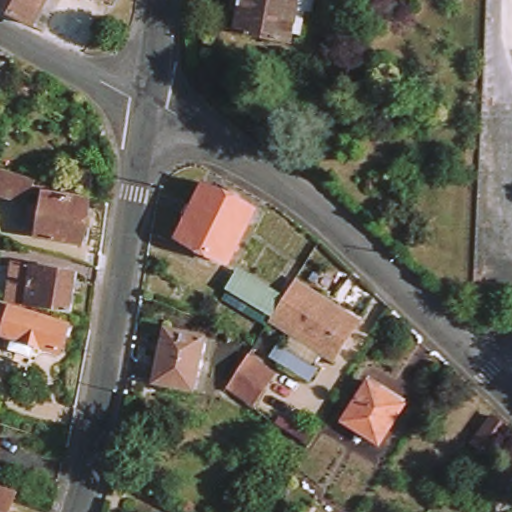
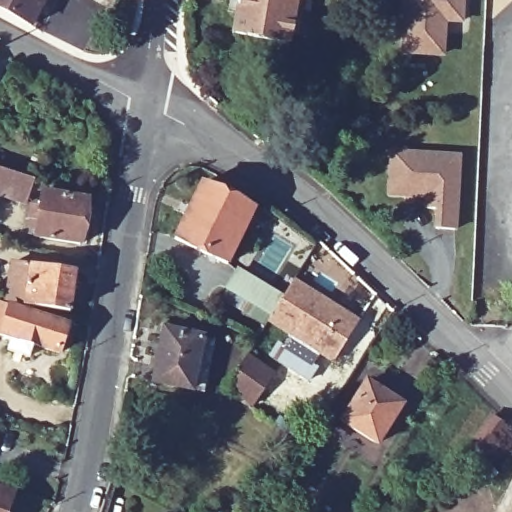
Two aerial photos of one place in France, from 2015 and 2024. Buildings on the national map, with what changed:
unchanged [(0,8),(0,0),(41,0),(28,23),(0,8)]
unchanged [(104,0),(107,0),(106,1),(104,0)]
unchanged [(240,0),(298,0),(291,41),(234,31),(240,0)]
new [(403,0),(465,0),(464,24),(446,23),(445,57),(399,57),(403,0)]
new [(433,229),(434,209),(424,211),(425,200),(386,198),(389,150),(463,155),(458,232),(433,229)]
unchanged [(0,195),(0,168),(44,181),(41,189),(35,187),(29,204),(0,195)]
unchanged [(228,262),(177,236),(205,183),(255,209),(228,262)]
unchanged [(88,199),(82,243),(37,237),(44,192),(88,199)]
unchanged [(23,263),(78,273),(72,312),(29,305),(26,303),(18,301),(23,263)]
unchanged [(235,283),(246,267),(290,292),(278,309),(235,283)]
unchanged [(278,309),(290,292),(297,280),(362,321),(337,359),(324,350),(315,364),(329,372),(321,385),(282,361),(290,349),(302,356),(310,342),(272,320),(278,309)]
unchanged [(0,333),(0,304),(11,308),(69,329),(60,354),(4,335),(3,334),(0,333)]
unchanged [(203,335),(192,387),(155,380),(165,328),(203,335)]
unchanged [(243,370),(250,372),(256,363),(271,372),(266,382),(268,384),(258,399),(234,385),(243,370)]
unchanged [(382,444),(346,421),(368,384),(405,406),(382,444)]
unchanged [(500,425),(472,470),(470,472),(462,485),(447,475),(457,459),(457,455),(484,415),(500,425)]
unchanged [(512,449),(501,464),(485,454),(504,427),(512,433),(512,449)]
unchanged [(408,470),(413,461),(419,465),(413,475),(408,470)]
unchanged [(14,496),(9,512),(0,512),(0,491),(14,496)]

